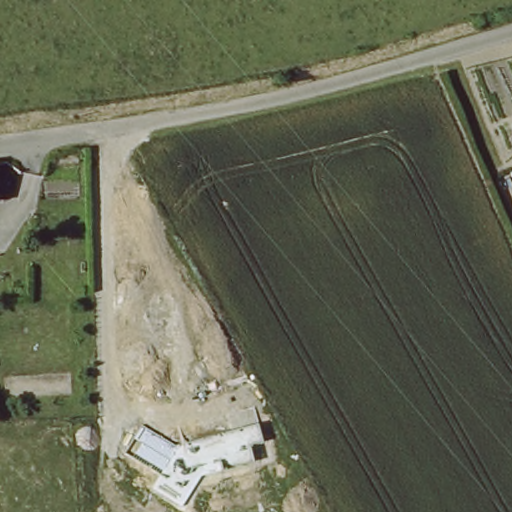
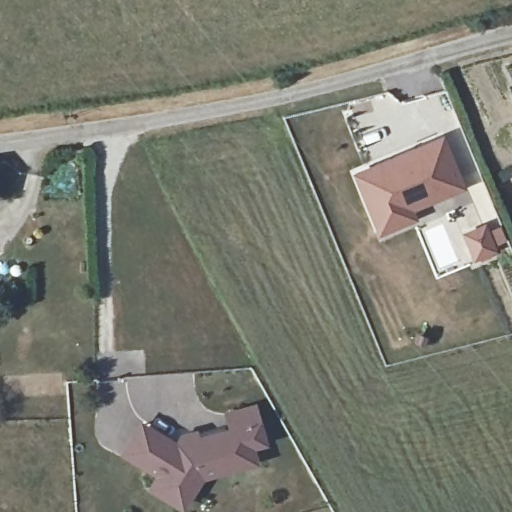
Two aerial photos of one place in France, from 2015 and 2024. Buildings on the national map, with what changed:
new [(443,135),(466,187),(413,210),(417,219),(378,235),(351,172),(443,135)]
new [(485,222),(488,229),(500,225),(507,239),(494,243),(498,252),(475,262),(463,232),(485,222)]
new [(139,420),(176,439),(179,431),(197,428),(198,433),(226,427),(223,411),(256,402),(266,444),(253,448),(258,463),(203,477),(183,512),(145,489),(153,473),(119,453),(139,420)]

